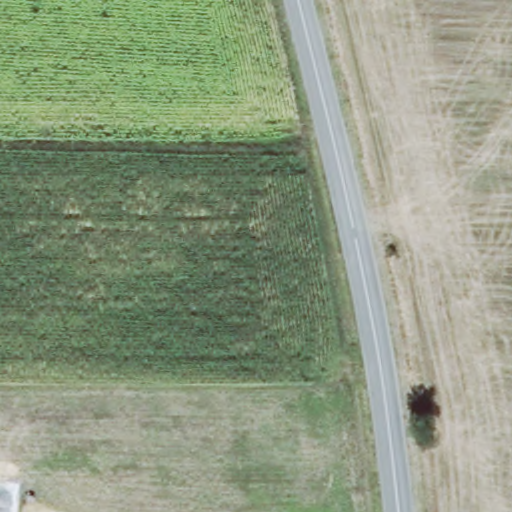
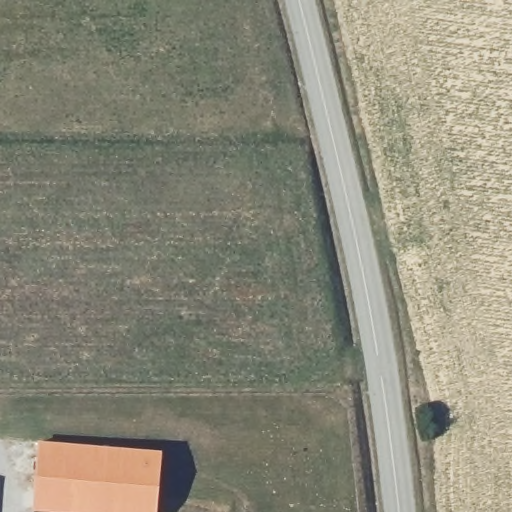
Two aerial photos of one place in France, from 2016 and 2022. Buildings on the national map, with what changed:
new [(157,512),(66,512),(33,510),(38,439),(162,449),(157,512)]

